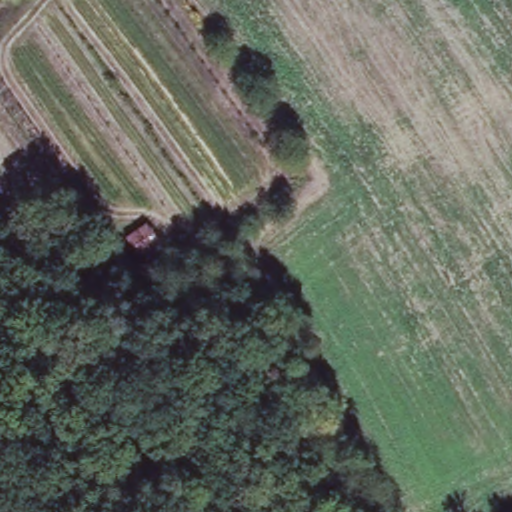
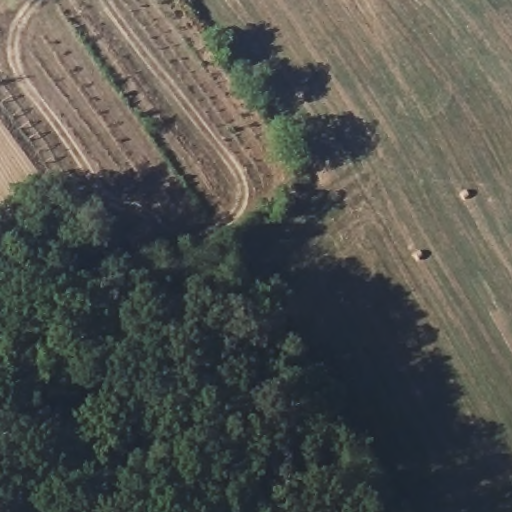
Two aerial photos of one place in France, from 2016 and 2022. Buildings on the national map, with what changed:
unchanged [(136,258),(124,241),(146,224),(159,244),(136,258)]

